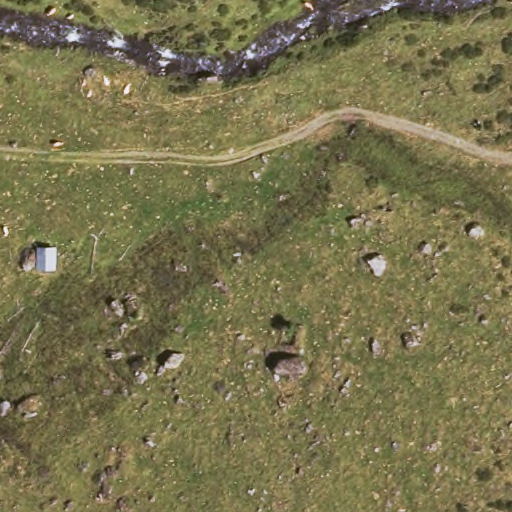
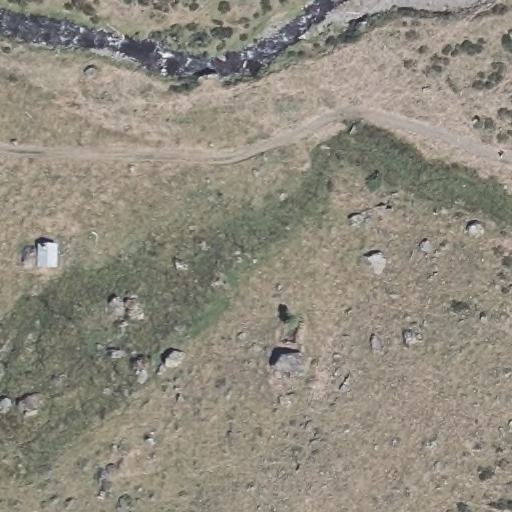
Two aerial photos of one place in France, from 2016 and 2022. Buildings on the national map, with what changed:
unchanged [(32,242),(65,243),(65,256),(65,271),(31,270),(32,242)]

